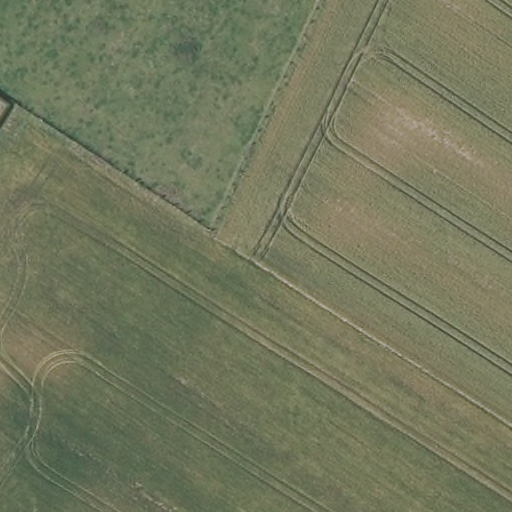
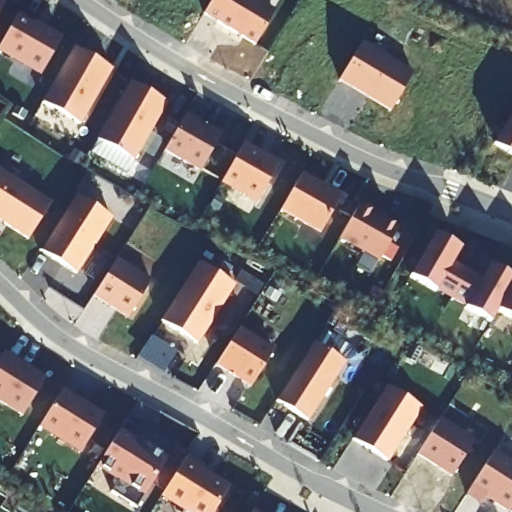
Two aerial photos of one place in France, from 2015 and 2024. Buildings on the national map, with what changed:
new [(273,14),(255,46),(203,15),(212,0),(249,0),(273,14)]
new [(0,14),(0,1),(6,4),(0,14)]
new [(32,26),(60,42),(40,77),(0,54),(0,47),(18,14),(34,22),(32,26)]
new [(362,40),(414,71),(390,111),(338,80),(362,40)]
new [(111,71),(79,127),(42,105),(73,50),(111,71)]
new [(133,161),(97,140),(129,83),(167,104),(133,161)]
new [(185,116),(221,136),(201,171),(165,151),(185,116)]
new [(496,144),(512,118),(512,154),(496,144)]
new [(257,201),(222,182),(243,144),(278,164),(257,201)]
new [(31,241),(0,221),(0,170),(55,205),(31,241)]
new [(320,231),(281,210),(302,174),(340,196),(320,231)]
new [(40,251),(75,195),(112,217),(75,274),(40,251)]
new [(397,227),(378,260),(340,238),(360,202),(375,211),(374,213),(397,227)]
new [(493,324),(468,310),(469,308),(440,291),(439,293),(413,278),(437,237),(462,250),(454,264),(485,281),(492,267),(512,278),(512,320),(500,312),(493,324)]
new [(93,296),(117,258),(151,280),(126,317),(93,296)]
new [(198,262),(234,285),(197,344),(161,321),(198,262)]
new [(240,328),(258,343),(252,362),(256,365),(252,371),(259,375),(250,388),(215,366),(227,346),(240,328)]
new [(313,342),(344,361),(306,420),(276,401),(313,342)]
new [(0,401),(0,359),(3,353),(45,379),(22,415),(0,401)]
new [(387,385),(421,407),(386,462),(352,440),(387,385)]
new [(62,391),(103,416),(81,452),(40,426),(62,391)]
new [(452,475),(417,454),(440,418),(474,441),(452,475)]
new [(135,440),(167,460),(136,507),(112,492),(119,481),(97,467),(125,422),(140,431),(135,440)]
new [(486,499),(482,506),(466,496),(495,450),(512,461),(512,492),(501,509),(486,499)]
new [(202,466),(201,470),(229,487),(214,512),(188,512),(162,495),(186,456),(202,466)]
new [(252,512),(252,511),(253,512),(252,512)]

